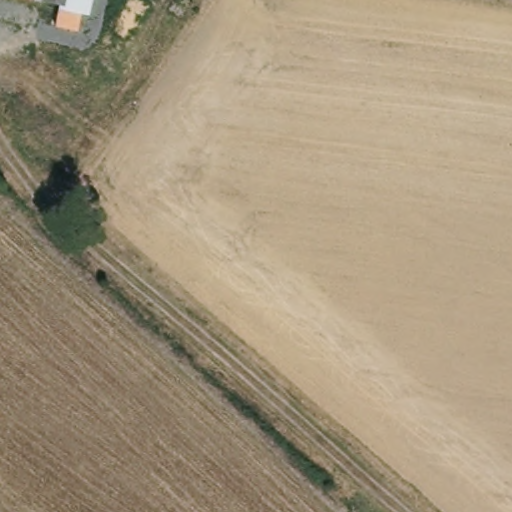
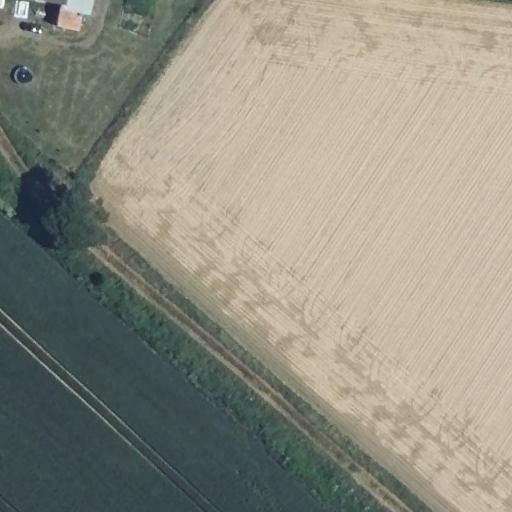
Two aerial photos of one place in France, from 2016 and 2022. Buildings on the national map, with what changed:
unchanged [(63,3),(51,0),(64,0),(63,3)]
unchanged [(62,6),(82,11),(78,29),(58,24),(62,6)]

